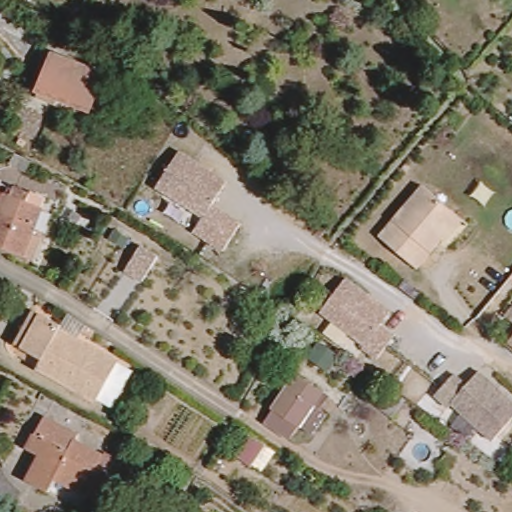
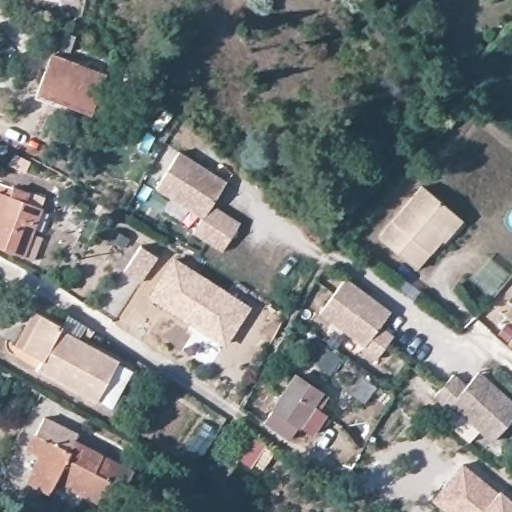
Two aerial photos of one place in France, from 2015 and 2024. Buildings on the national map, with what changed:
unchanged [(52,58),(97,76),(84,112),(37,94),(52,58)]
unchanged [(206,173),(227,185),(224,189),(212,209),(241,227),(223,255),(193,236),(202,221),(156,192),(179,156),(206,173)]
unchanged [(35,164),(29,177),(15,171),(21,157),(35,164)]
unchanged [(27,237),(37,241),(28,262),(0,251),(0,183),(6,185),(42,200),(27,237)]
unchanged [(436,250),(406,278),(371,241),(421,194),(448,222),(457,231),(436,250)]
unchanged [(137,245),(154,254),(137,285),(119,274),(137,245)]
new [(172,254),(252,306),(224,347),(186,324),(145,296),(172,254)]
unchanged [(371,297),(391,311),(388,315),(380,326),(394,336),(377,359),(362,349),(365,346),(319,314),(344,279),(371,297)]
unchanged [(510,323),(497,308),(512,296),(512,353),(496,338),(510,323)]
unchanged [(34,315),(38,306),(56,314),(52,323),(55,325),(53,332),(107,361),(86,401),(27,368),(30,359),(15,351),(34,315)]
unchanged [(350,360),(341,373),(321,360),(320,359),(325,352),(329,346),(350,360)]
unchanged [(487,368),(505,384),(512,391),(512,424),(500,437),(489,427),(459,400),(456,404),(443,391),(462,370),(474,382),(484,372),(487,368)]
unchanged [(324,420),(331,425),(309,460),(255,426),(287,376),(334,405),(324,420)]
unchanged [(92,479),(107,487),(95,512),(56,489),(48,500),(25,488),(40,463),(27,455),(50,419),(82,436),(76,447),(101,462),(92,479)]
unchanged [(244,436),(276,454),(264,477),(231,459),(244,436)]
new [(499,488),(512,499),(512,512),(448,512),(433,499),(462,463),(495,493),(499,488)]

